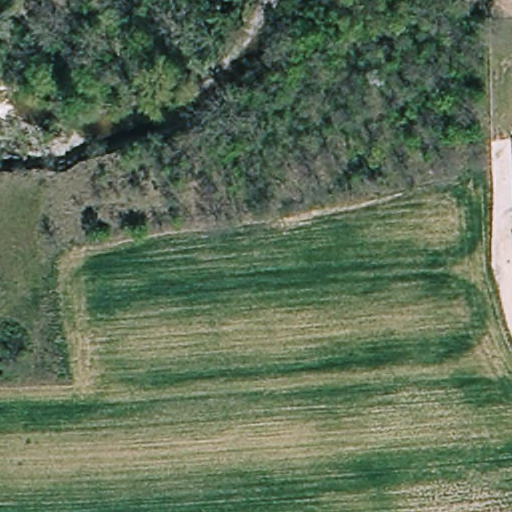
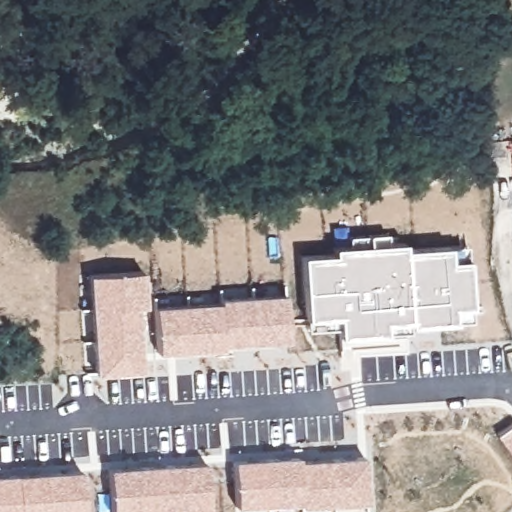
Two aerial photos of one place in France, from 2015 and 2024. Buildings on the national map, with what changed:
new [(339,329),(307,330),(306,319),(301,256),(334,254),(333,247),(349,245),(348,237),(387,234),(387,243),(404,242),(404,249),(449,245),(467,245),(466,259),(468,259),(470,307),(471,319),(454,321),(454,322),(409,325),(409,331),(384,333),(339,335),(339,329)]
new [(94,374),(87,274),(143,270),(144,306),(136,305),(140,371),(94,374)]
new [(218,302),(218,297),(284,293),(286,340),(221,344),(221,347),(156,352),(153,305),(218,302)]
new [(497,434),(512,423),(512,456),(497,434)]
new [(365,502),(301,507),(301,503),(235,507),(232,459),(297,456),(296,459),(363,456),(365,502)]
new [(207,508),(128,512),(110,512),(108,468),(204,461),(207,508)]
new [(0,475),(79,469),(82,512),(0,512),(0,475)]

